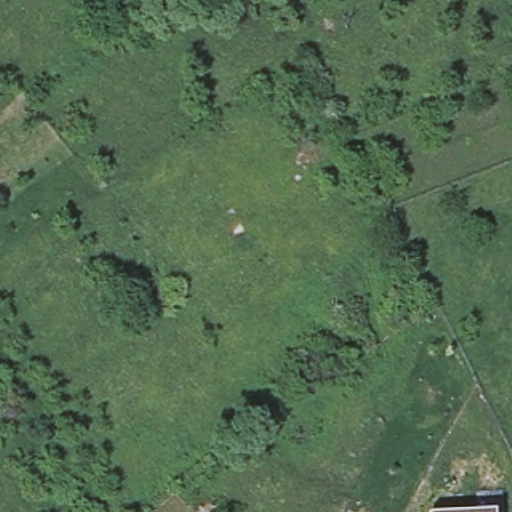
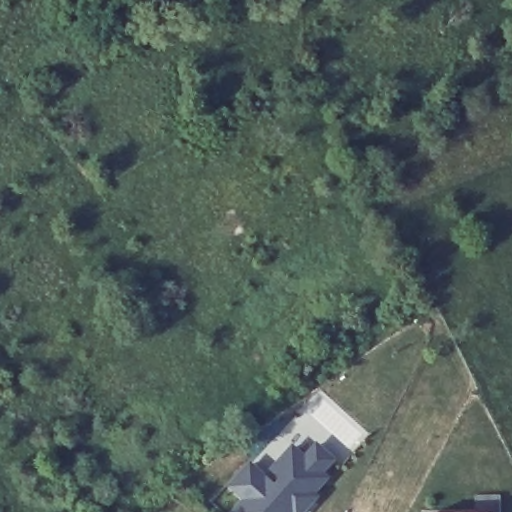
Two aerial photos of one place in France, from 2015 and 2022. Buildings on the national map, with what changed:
new [(332,459),(320,473),(325,477),(300,505),(305,508),(301,512),(235,512),(247,499),(230,485),(250,464),(275,488),(282,480),(272,471),(292,448),(305,459),(316,445),(332,459)]

